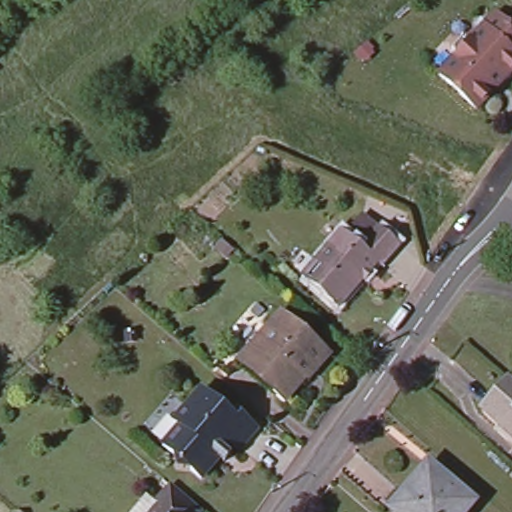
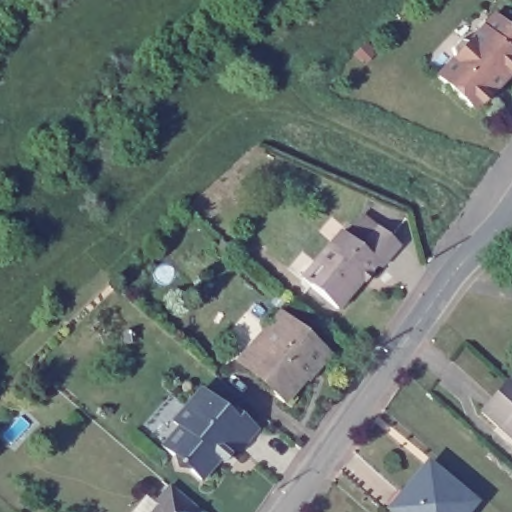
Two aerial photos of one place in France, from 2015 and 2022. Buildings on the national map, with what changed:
unchanged [(512,32),(512,67),(474,107),(438,75),(454,57),(451,48),(459,39),(469,40),(493,14),(512,32)]
unchanged [(314,260),(339,230),(358,245),(376,224),(398,242),(379,264),(374,260),(336,306),(309,283),(300,276),(314,260)]
unchanged [(279,312),(326,353),(311,370),(309,369),(281,401),(270,391),(236,361),(264,329),(279,312)]
unchanged [(474,411),(503,379),(512,387),(512,445),(474,411)]
unchanged [(221,462),(216,458),(198,478),(188,469),(174,467),(169,454),(160,446),(176,427),(169,421),(197,389),(228,414),(232,408),(254,427),(235,450),(228,444),(223,449),(228,453),(221,462)]
unchanged [(459,512),(395,512),(389,507),(424,464),(469,500),(459,512)]
unchanged [(167,485),(198,512),(151,512),(156,506),(152,502),(167,485)]

